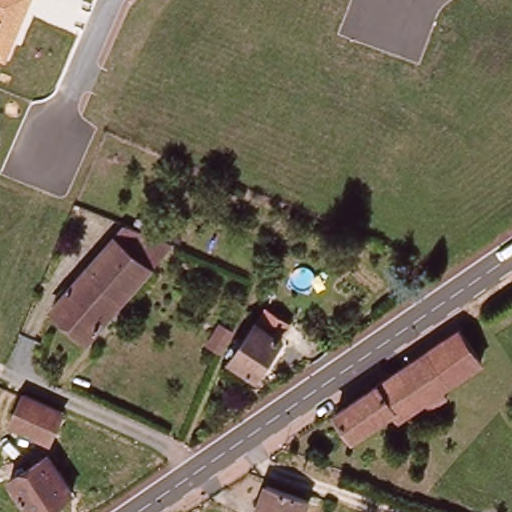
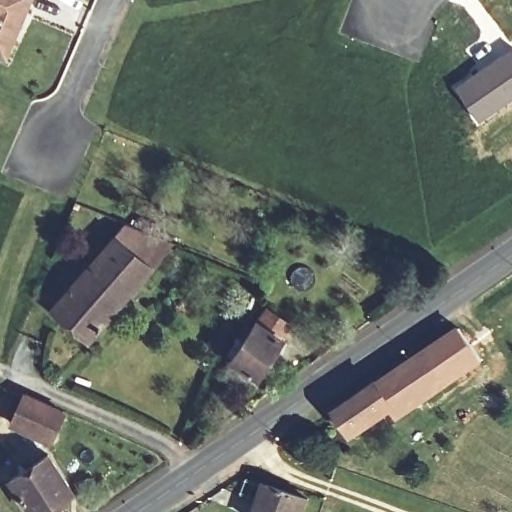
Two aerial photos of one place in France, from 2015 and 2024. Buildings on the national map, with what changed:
unchanged [(0,59),(0,0),(32,0),(6,61),(0,59)]
new [(512,98),(477,123),(452,88),(512,46),(512,98)]
unchanged [(150,266),(116,237),(127,225),(170,244),(150,266)]
unchanged [(116,237),(150,266),(121,295),(90,266),(116,237)]
unchanged [(90,266),(121,295),(87,331),(56,303),(90,266)]
unchanged [(230,362),(264,313),(287,328),(278,342),(281,344),(258,381),(230,362)]
unchanged [(219,348),(205,340),(219,318),(231,326),(219,348)]
unchanged [(457,328),(480,363),(453,382),(430,347),(457,328)]
unchanged [(444,400),(439,393),(405,417),(398,407),(357,435),(340,410),(430,347),(453,382),(445,388),(450,395),(444,400)]
unchanged [(51,443),(16,426),(29,394),(65,411),(51,443)]
unchanged [(43,512),(34,512),(9,475),(44,451),(70,492),(43,512)]
unchanged [(263,482),(309,497),(304,512),(255,512),(263,482)]

